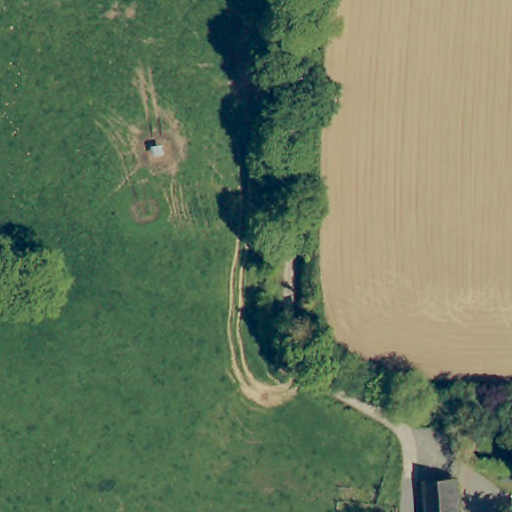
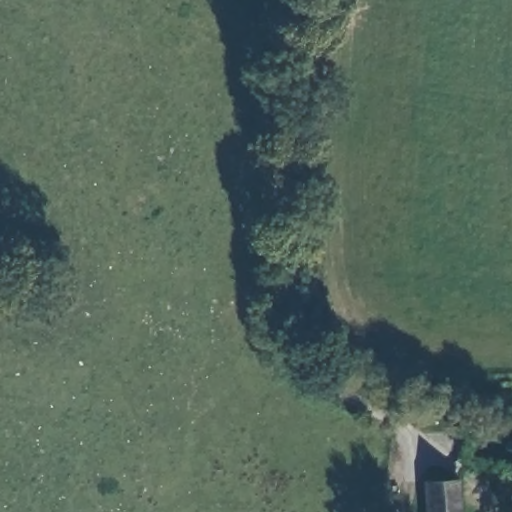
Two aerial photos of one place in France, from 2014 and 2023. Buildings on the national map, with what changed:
unchanged [(424,482),(459,480),(461,512),(426,512),(424,482)]

